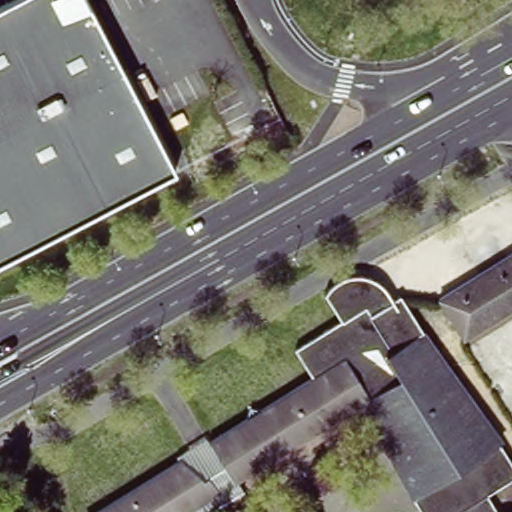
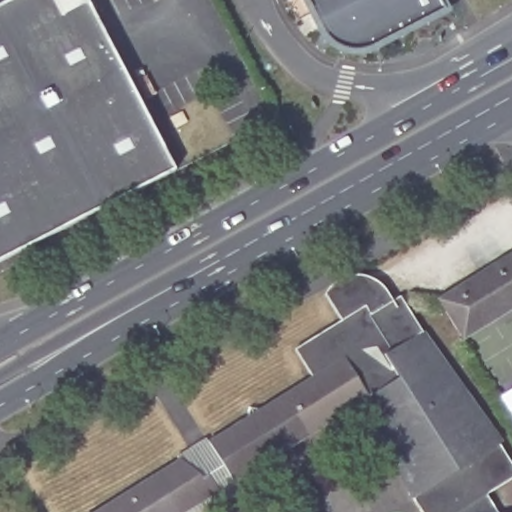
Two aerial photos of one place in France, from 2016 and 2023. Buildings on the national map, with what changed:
unchanged [(12,0),(86,0),(175,173),(0,263),(0,6),(12,0)]
new [(444,0),(448,8),(377,45),(366,49),(359,49),(352,49),(346,47),(340,44),(335,41),(330,36),(324,25),(311,0),(444,0)]
unchanged [(176,114),(182,125),(171,130),(166,120),(176,114)]
unchanged [(442,299),(512,255),(512,310),(467,339),(442,299)]
unchanged [(422,489),(436,481),(393,412),(400,407),(390,388),(249,476),(245,470),(232,479),(236,485),(232,487),(192,512),(83,512),(152,469),(166,460),(162,457),(191,439),(193,443),(231,419),(233,406),(246,409),(298,377),(280,349),(326,320),(309,294),(322,286),(323,285),(324,284),(325,284),(326,284),(326,283),(327,283),(328,282),(329,282),(330,282),(331,281),(334,280),(335,280),(336,280),(337,280),(338,279),(339,279),(340,279),(341,279),(342,279),(343,279),(345,279),(346,279),(347,279),(348,279),(349,279),(350,280),(351,280),(352,280),(353,280),(354,280),(355,281),(356,281),(357,281),(358,282),(359,282),(360,283),(362,283),(362,284),(363,284),(364,285),(365,285),(365,286),(366,286),(367,287),(368,288),(369,288),(370,289),(371,290),(372,291),(372,292),(373,292),(373,293),(374,293),(374,294),(375,294),(375,295),(376,296),(381,305),(389,300),(434,371),(437,370),(461,407),(459,409),(468,422),(470,421),(483,441),(485,440),(491,449),(509,478),(477,498),(486,512),(437,512),(422,489)]

